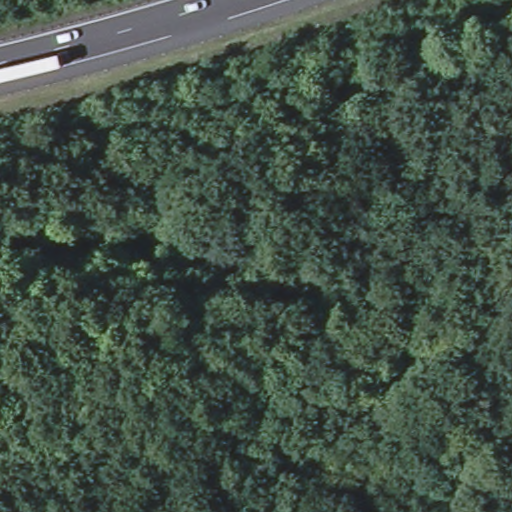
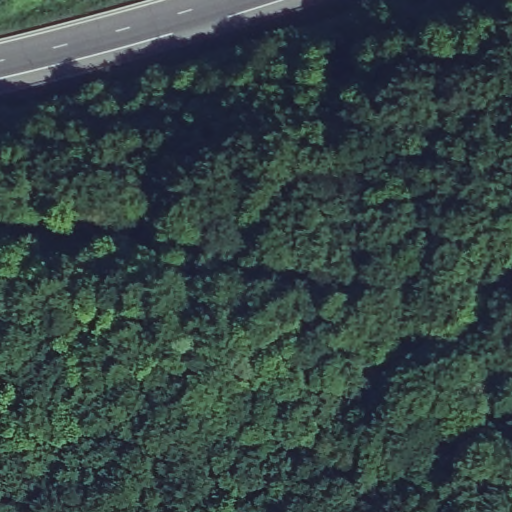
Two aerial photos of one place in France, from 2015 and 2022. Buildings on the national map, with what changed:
unchanged [(361,424),(314,445),(294,464),(261,484),(229,505),(191,440),(206,428),(225,416),(261,392),(293,363),(321,331),(371,418),(361,424)]

